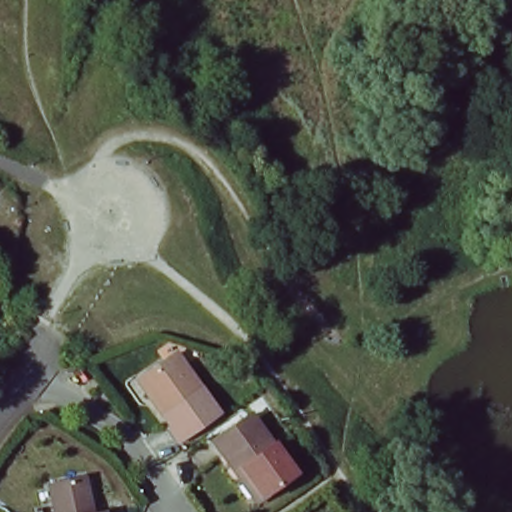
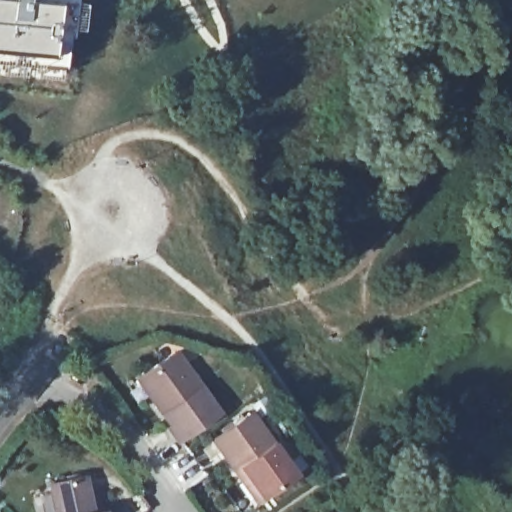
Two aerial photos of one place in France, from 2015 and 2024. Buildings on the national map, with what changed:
new [(62,35),(60,68),(0,63),(0,0),(68,0),(65,35),(62,35)]
unchanged [(178,440),(169,427),(172,425),(138,378),(177,353),(217,412),(178,440)]
unchanged [(241,478),(213,440),(251,413),(294,474),(262,497),(257,500),(241,478)]
unchanged [(51,488),(50,483),(53,483),(84,476),(92,512),(56,512),(51,488)]
unchanged [(104,512),(102,512),(104,511),(104,512)]

